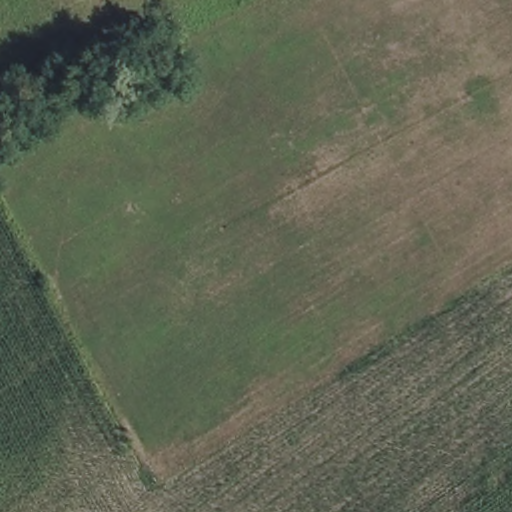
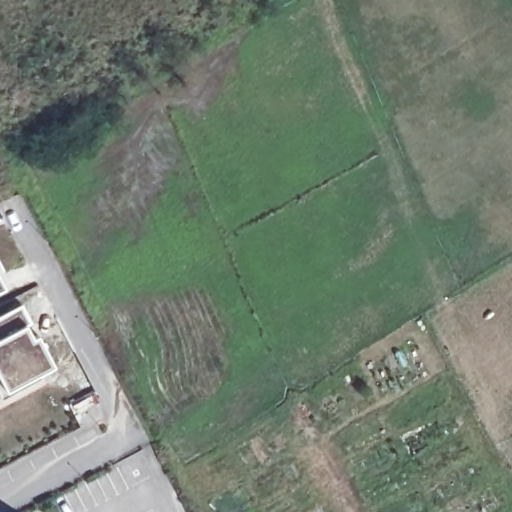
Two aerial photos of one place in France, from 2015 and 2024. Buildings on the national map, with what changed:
new [(0,290),(0,278),(5,287),(0,290)]
new [(31,322),(17,329),(24,341),(38,334),(54,365),(39,372),(42,377),(7,396),(0,399),(0,316),(21,304),(31,322)]

